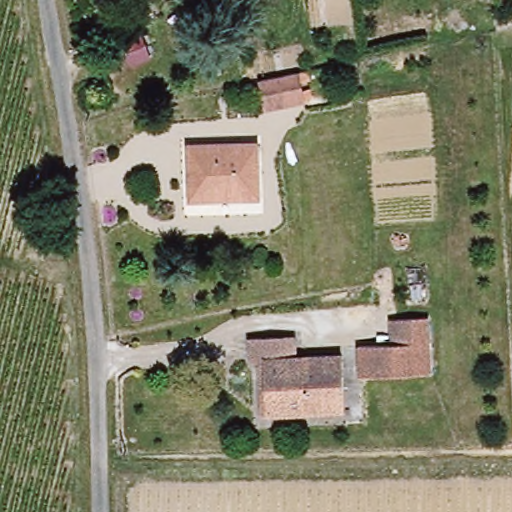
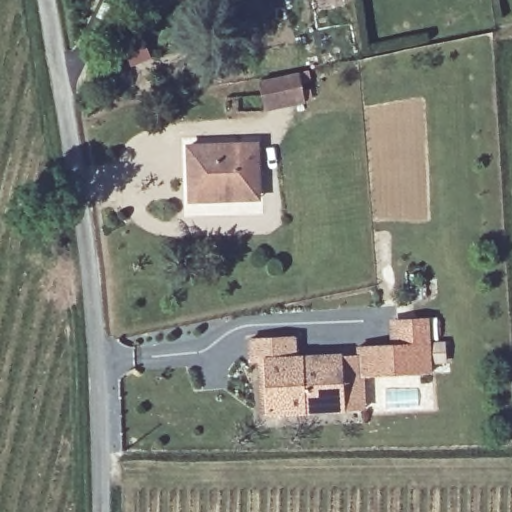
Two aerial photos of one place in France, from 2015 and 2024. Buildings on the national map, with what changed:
unchanged [(142,52),(125,57),(118,35),(136,30),(142,52)]
unchanged [(261,108),(256,80),(295,72),(298,100),(261,108)]
unchanged [(187,200),(187,143),(257,141),(259,199),(187,200)]
unchanged [(360,377),(360,348),(398,347),(397,321),(430,320),(430,375),(360,377)]
unchanged [(256,358),(249,358),(247,339),(295,337),(295,358),(340,356),(342,414),(268,416),(267,411),(257,411),(256,358)]

